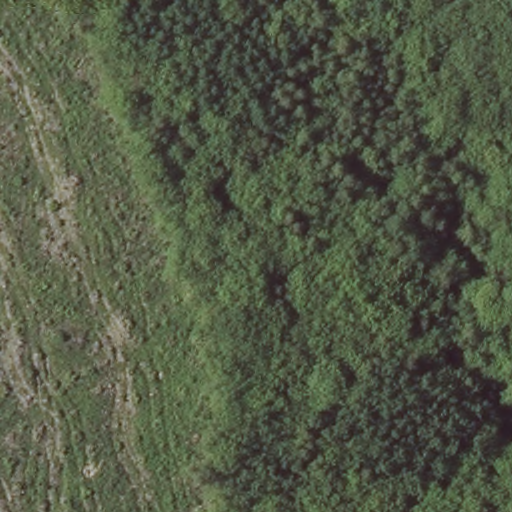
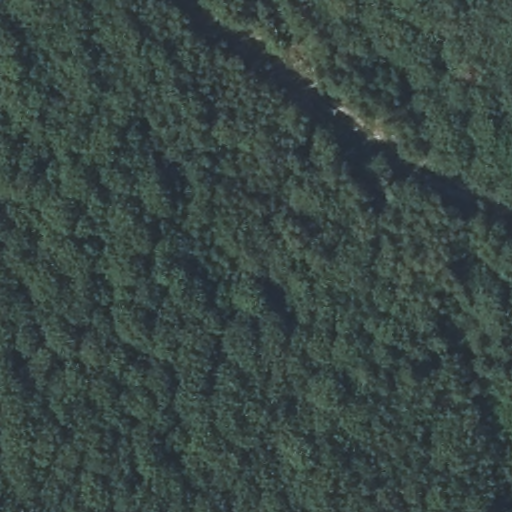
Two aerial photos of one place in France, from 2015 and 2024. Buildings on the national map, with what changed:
[]

